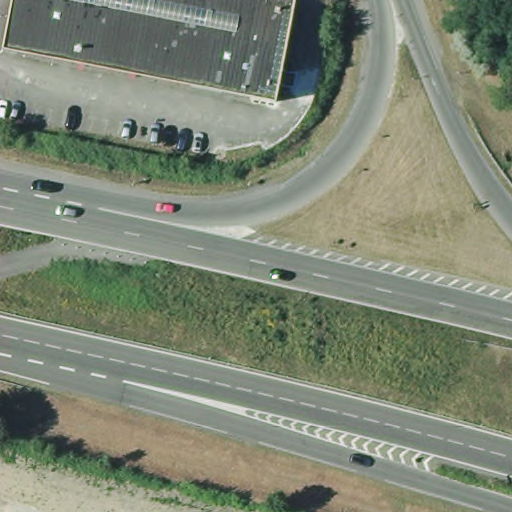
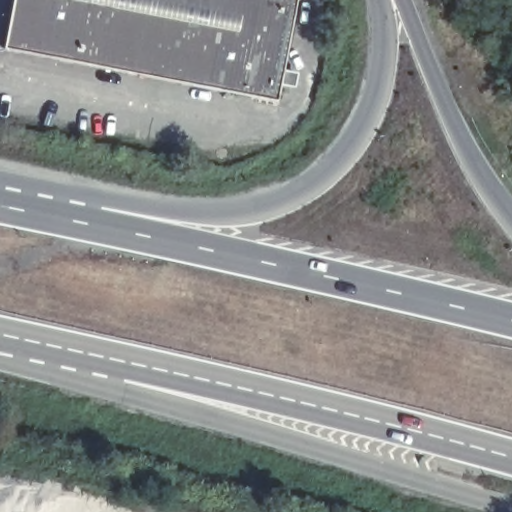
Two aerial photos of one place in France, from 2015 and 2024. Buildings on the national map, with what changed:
unchanged [(280,70),(291,73),(288,87),(277,85),(275,96),(282,104),(275,112),(259,108),(249,97),(2,50),(13,0),(294,0),(280,70)]

